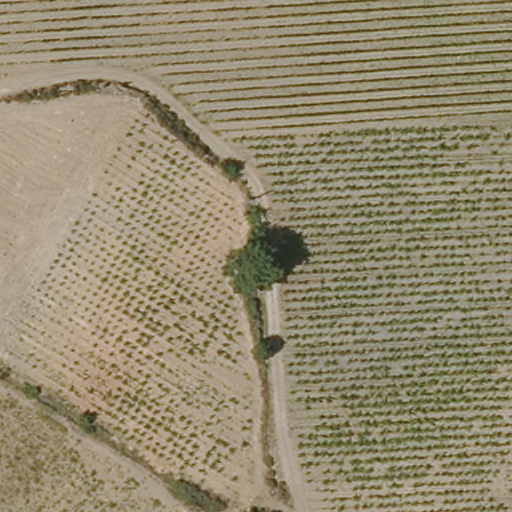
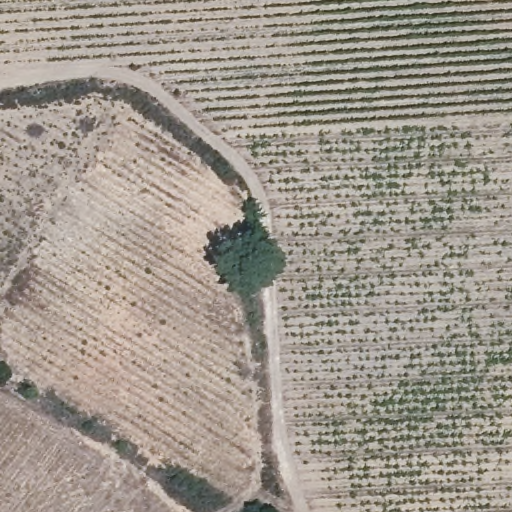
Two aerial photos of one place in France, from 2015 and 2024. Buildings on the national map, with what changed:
unchanged [(254,268),(256,288),(236,289),(234,270),(254,268)]

